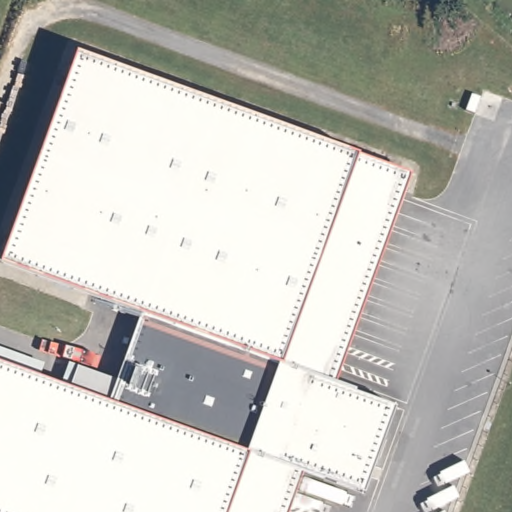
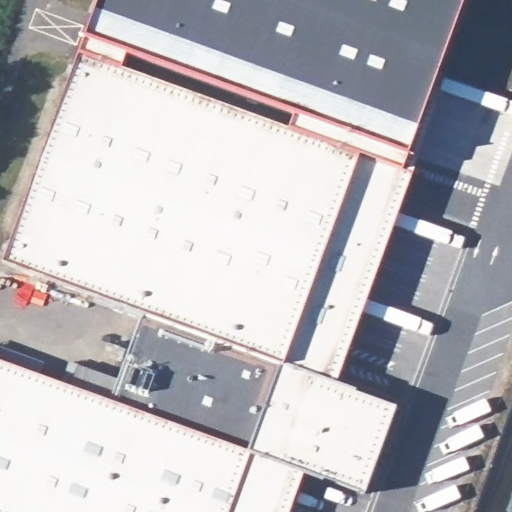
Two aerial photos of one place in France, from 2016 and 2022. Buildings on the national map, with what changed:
new [(395,189),(351,172),(72,71),(84,38),(98,0),(461,0),(407,155),(395,189)]
unchanged [(72,71),(395,189),(320,397),(350,407),(350,409),(391,424),(366,492),(325,477),(324,479),(293,468),(278,512),(0,512),(0,363),(70,388),(110,402),(118,378),(144,310),(104,296),(4,259),(72,71)]
unchanged [(79,365),(118,378),(110,402),(70,388),(79,365)]

